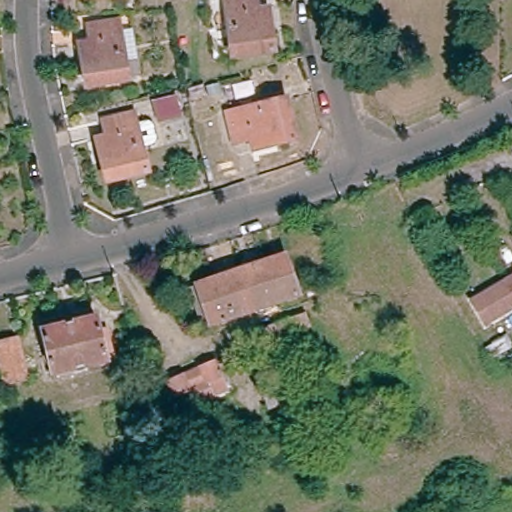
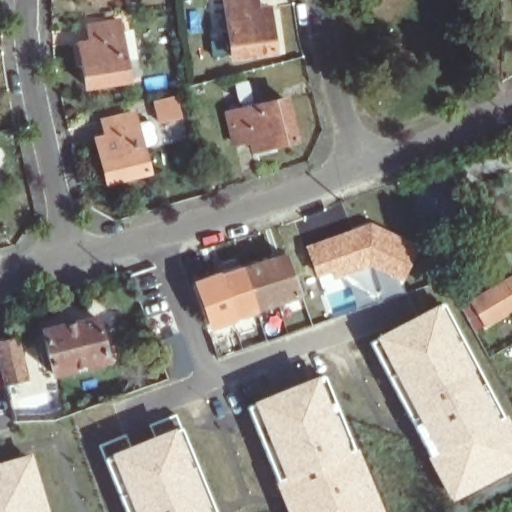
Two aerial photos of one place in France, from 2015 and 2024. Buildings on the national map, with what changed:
unchanged [(258,8),(268,7),(275,52),(234,58),(223,0),(257,0),(258,8)]
unchanged [(96,43),(94,29),(124,24),(135,80),(91,88),(83,45),(96,43)]
unchanged [(296,99),(306,139),(266,149),(263,137),(247,141),(240,113),(296,99)]
unchanged [(182,102),(185,113),(164,117),(160,107),(182,102)]
unchanged [(108,135),(105,123),(137,114),(149,170),(106,182),(97,138),(108,135)]
new [(370,221),(420,244),(402,282),(370,268),(331,282),(332,284),(321,288),(304,245),(370,221)]
unchanged [(281,253),(296,295),(211,325),(196,283),(281,253)]
unchanged [(512,277),(512,308),(486,323),(473,301),(512,277)]
new [(512,433),(512,465),(451,497),(370,340),(444,302),(512,433)]
demolished [(238,337),(304,313),(310,324),(278,335),(242,349),(238,337)]
unchanged [(99,315),(111,359),(57,373),(44,328),(99,315)]
new [(192,371),(171,377),(166,359),(170,358),(165,338),(182,333),(192,371)]
unchanged [(30,376),(7,383),(0,357),(0,341),(19,337),(30,376)]
demolished [(220,360),(232,388),(202,400),(197,388),(182,393),(176,378),(220,360)]
new [(379,512),(292,512),(249,405),(324,374),(379,512)]
new [(105,452),(180,422),(216,512),(125,512),(101,449),(103,448),(105,452)]
new [(49,512),(0,512),(0,459),(30,450),(49,512)]

